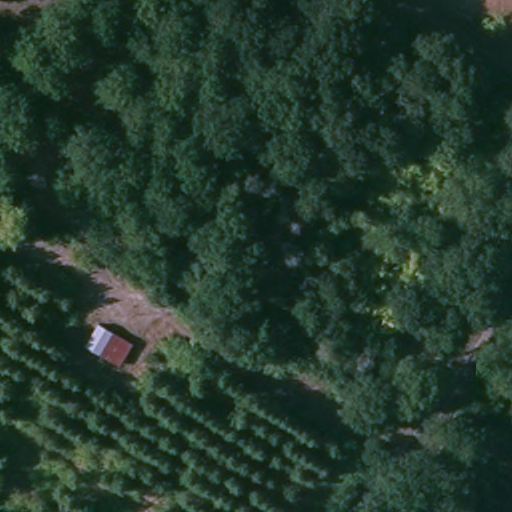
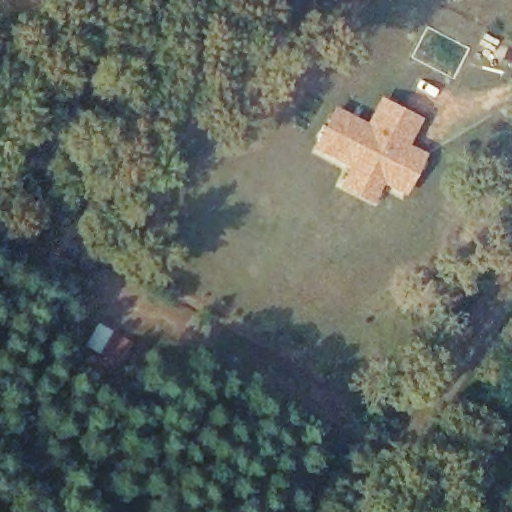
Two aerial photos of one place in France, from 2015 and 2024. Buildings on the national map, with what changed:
new [(368,122),(380,96),(422,118),(410,145),(427,153),(407,195),(384,184),(373,205),(340,187),(351,167),(314,148),(335,106),(368,122)]
new [(131,342),(120,367),(84,345),(98,323),(131,342)]

